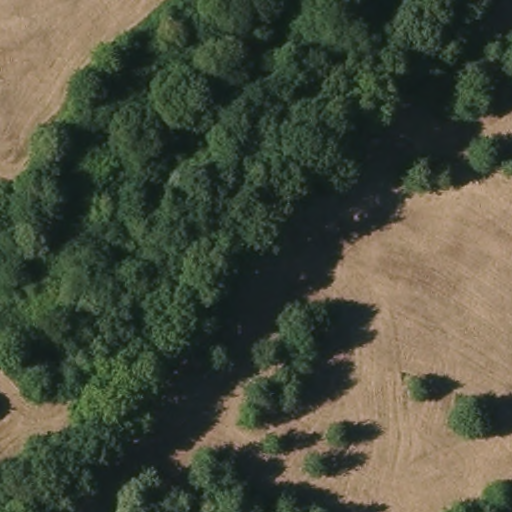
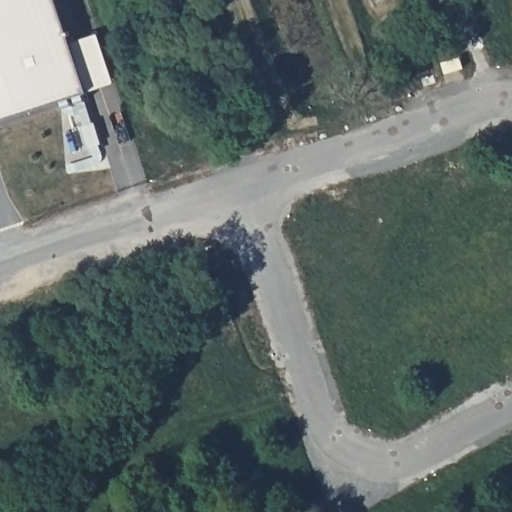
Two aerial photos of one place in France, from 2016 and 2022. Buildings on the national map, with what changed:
new [(56,0),(69,41),(97,32),(114,81),(86,90),(0,120),(0,0),(56,0)]

